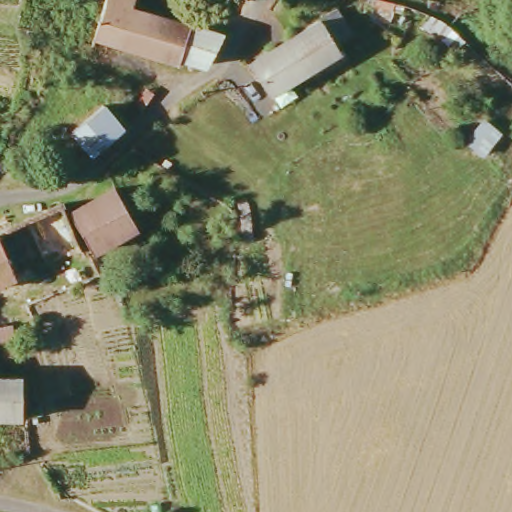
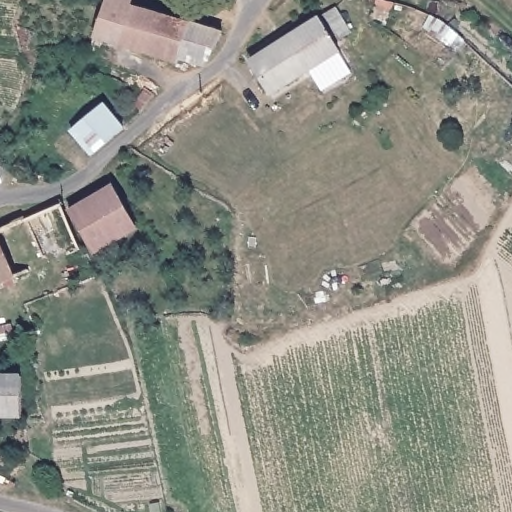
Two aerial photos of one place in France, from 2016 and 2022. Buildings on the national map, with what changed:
unchanged [(181,66),(97,40),(107,4),(108,0),(138,0),(136,9),(191,27),(223,37),(203,68),(182,60),(181,66)]
unchanged [(252,65),(275,50),(289,41),(338,13),(349,31),(331,44),(339,58),(310,75),(296,84),(273,99),(252,65)]
unchanged [(75,136),(105,108),(126,133),(94,158),(75,136)]
unchanged [(70,214),(116,187),(136,225),(91,253),(70,214)]
unchanged [(0,285),(0,245),(15,279),(0,285)]
unchanged [(20,416),(0,416),(0,374),(22,375),(20,416)]

